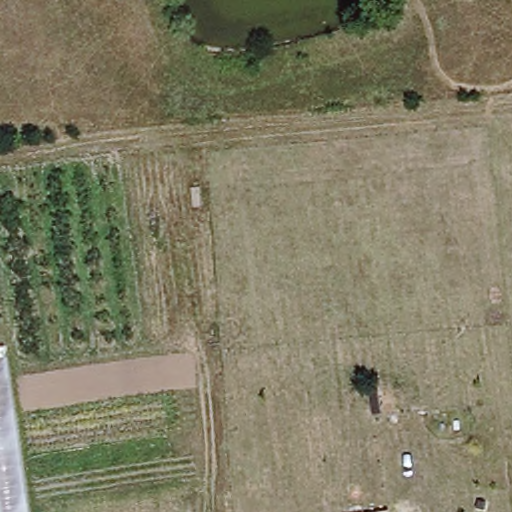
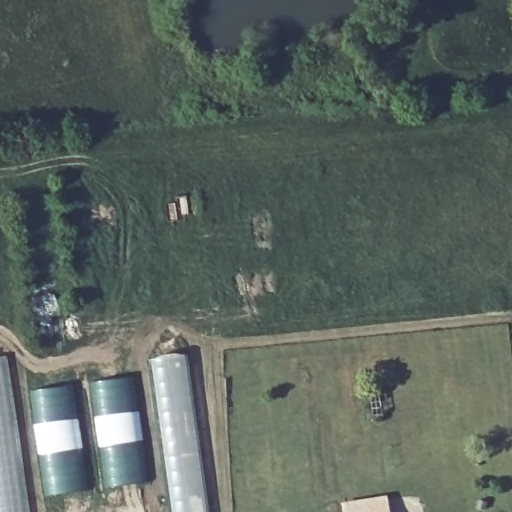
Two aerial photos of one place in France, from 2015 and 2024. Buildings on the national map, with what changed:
new [(186,352),(209,512),(169,512),(160,437),(147,358),(186,352)]
new [(7,354),(20,442),(30,512),(0,512),(0,355),(7,354)]
new [(135,373),(149,480),(103,488),(90,410),(87,381),(135,373)]
new [(74,381),(84,447),(37,456),(27,389),(74,381)]
new [(84,447),(89,489),(43,497),(37,456),(84,447)]
demolished [(2,450),(11,512),(0,512),(0,450),(2,450)]

